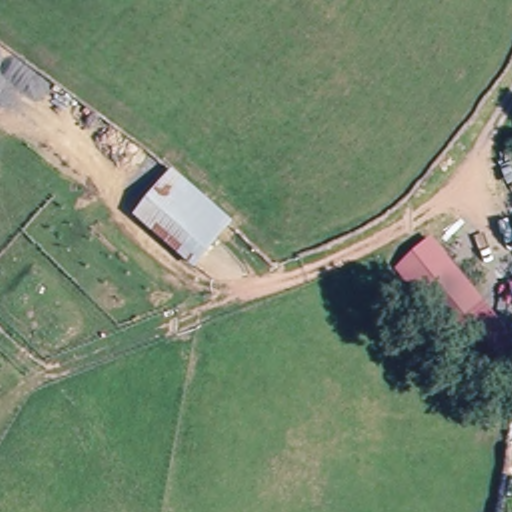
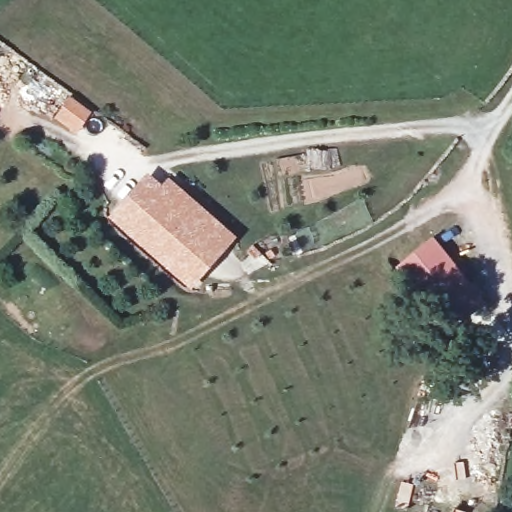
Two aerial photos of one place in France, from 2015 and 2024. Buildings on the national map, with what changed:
new [(191,289),(108,216),(148,172),(163,184),(169,177),(237,236),(191,289)]
demolished [(201,265),(139,215),(161,187),(223,237),(201,265)]
unchanged [(429,245),(485,302),(456,332),(399,275),(429,245)]

